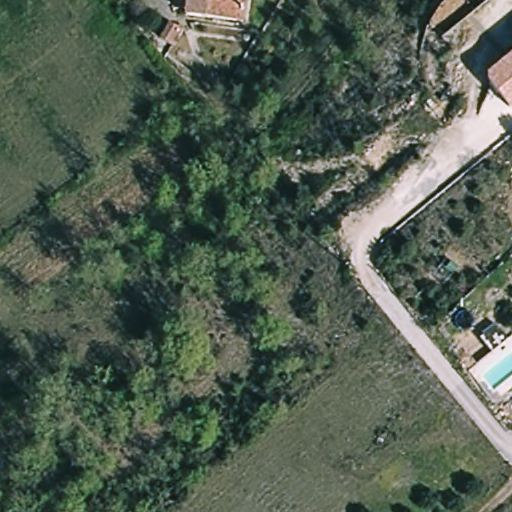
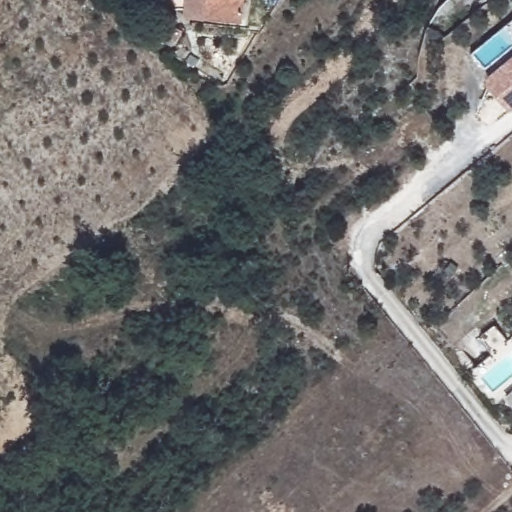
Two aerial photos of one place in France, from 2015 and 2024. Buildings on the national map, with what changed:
unchanged [(240,21),(203,16),(203,17),(184,15),(186,0),(243,0),(240,21)]
unchanged [(477,5),(473,0),(483,0),(477,5)]
unchanged [(168,23),(180,30),(171,46),(160,38),(168,23)]
unchanged [(484,77),(512,53),(512,107),(510,108),(484,77)]

